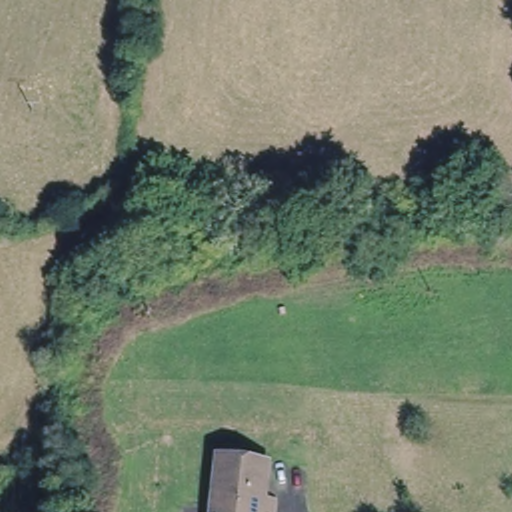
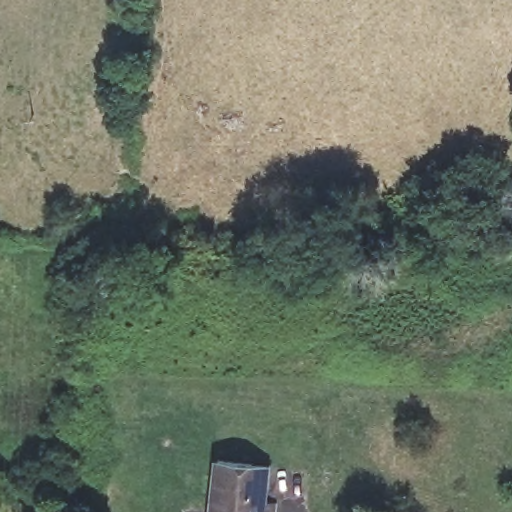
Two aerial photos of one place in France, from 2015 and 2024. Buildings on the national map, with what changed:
unchanged [(278,512),(215,512),(218,465),(267,461),(266,499),(278,499),(278,512)]

